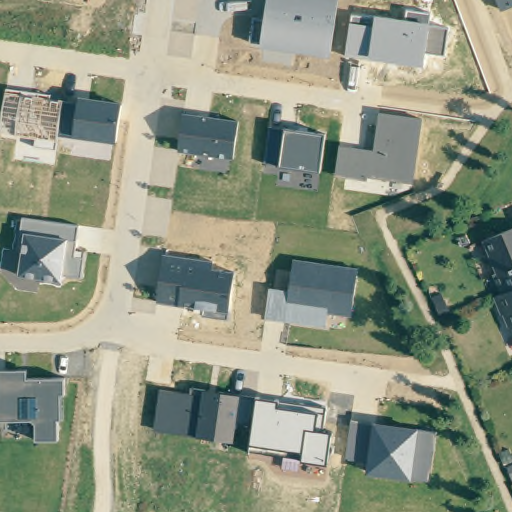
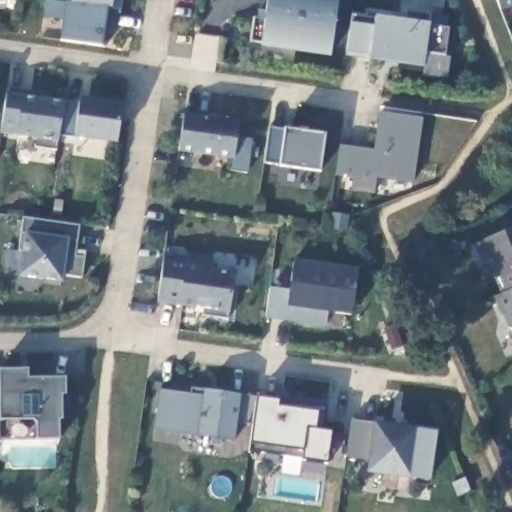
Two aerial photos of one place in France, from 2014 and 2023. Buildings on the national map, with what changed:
new [(111,9),(106,8),(101,47),(59,42),(62,19),(42,17),(46,0),(69,3),(70,0),(121,0),(120,10),(111,9)]
unchanged [(267,18),(269,0),(338,0),(331,55),(261,44),(250,41),(255,17),(267,18)]
unchanged [(501,9),(497,0),(512,0),(512,5),(501,9)]
unchanged [(351,13),(377,16),(404,19),(407,9),(432,12),(431,24),(448,27),(444,56),(427,54),(425,66),(345,55),(351,13)]
unchanged [(56,148),(32,147),(34,136),(0,132),(0,119),(5,89),(39,93),(38,98),(65,102),(59,135),(56,148)]
unchanged [(65,102),(79,103),(81,96),(124,102),(117,142),(76,137),(59,135),(65,102)]
unchanged [(241,119),(236,158),(180,151),(184,112),(241,119)]
unchanged [(376,149),(380,112),(423,117),(412,183),(366,175),(366,179),(334,175),(341,146),(376,149)]
unchanged [(286,128),(326,135),(321,170),(281,164),(265,161),(269,127),(286,128)]
unchanged [(81,224),(77,248),(87,250),(83,276),(66,274),(65,281),(19,275),(24,251),(20,250),(25,216),(81,224)]
unchanged [(493,271),(499,268),(486,237),(512,227),(512,287),(502,291),(493,271)]
unchanged [(214,260),(212,265),(237,269),(229,319),(202,316),(204,308),(156,302),(164,254),(214,260)]
unchanged [(290,289),(294,260),(357,267),(352,316),(328,313),(327,326),(266,317),(271,288),(290,289)]
unchanged [(508,322),(502,307),(501,308),(495,293),(502,291),(512,287),(512,325),(508,322)]
unchanged [(27,368),(27,378),(66,378),(66,392),(62,392),(62,417),(60,417),(59,438),(39,438),(39,422),(35,418),(0,419),(0,378),(0,369),(27,368)]
unchanged [(205,395),(205,390),(257,397),(278,400),(277,406),(318,411),(316,427),(330,430),(326,463),(303,460),(250,453),(254,424),(239,421),(236,440),(155,430),(160,389),(205,395)]
unchanged [(376,423),(417,428),(437,431),(431,480),(412,478),(368,473),(371,460),(347,456),(352,420),(376,423)]

